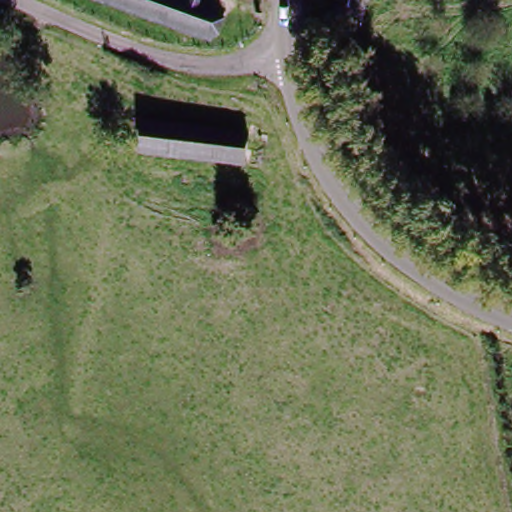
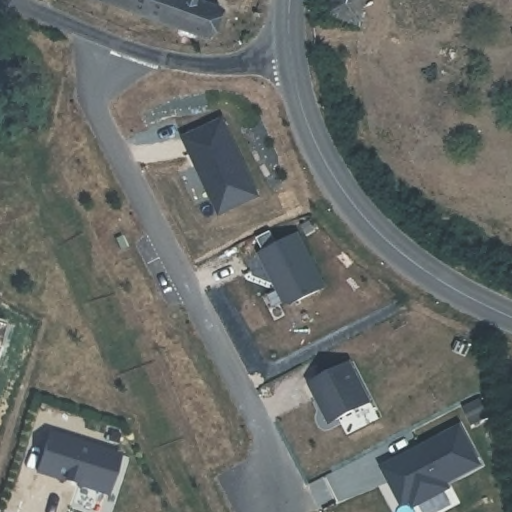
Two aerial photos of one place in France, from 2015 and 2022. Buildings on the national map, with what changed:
unchanged [(208,38),(104,0),(199,0),(220,7),(208,38)]
unchanged [(334,0),(368,0),(362,22),(330,14),(334,0)]
new [(224,119),(260,195),(222,213),(186,136),(224,119)]
demolished [(246,140),(242,168),(142,155),(145,126),(246,140)]
new [(300,232),(327,285),(294,302),(287,300),(262,252),(300,232)]
new [(353,361),(373,400),(334,421),(313,382),(353,361)]
new [(414,450),(415,452),(424,448),(422,446),(463,425),(483,463),(449,480),(452,486),(417,505),(413,499),(405,503),(386,465),(414,450)]
new [(53,432),(123,455),(111,493),(41,471),(53,432)]

